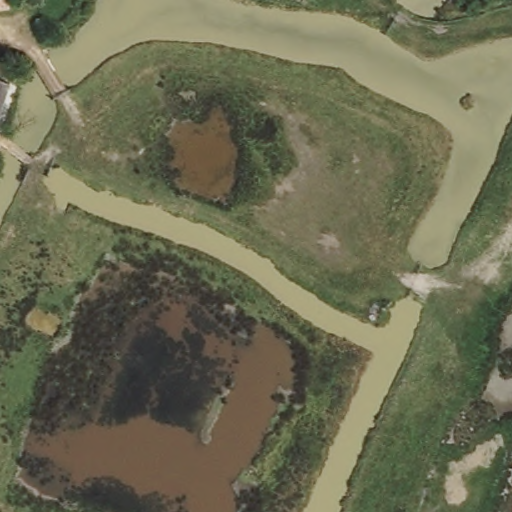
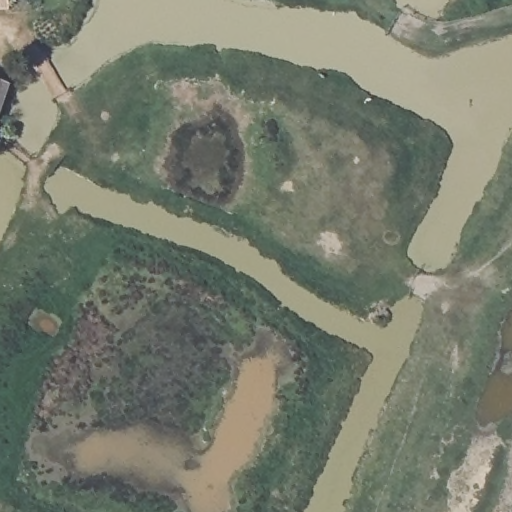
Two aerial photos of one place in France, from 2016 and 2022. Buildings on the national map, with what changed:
unchanged [(16,12),(0,13),(0,0),(15,0),(16,12)]
unchanged [(0,99),(0,82),(5,83),(0,99)]

